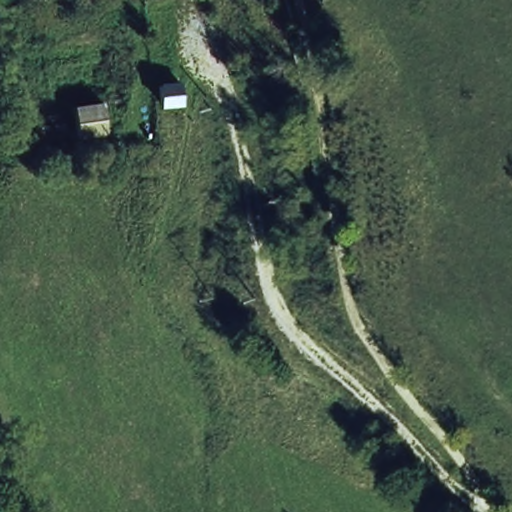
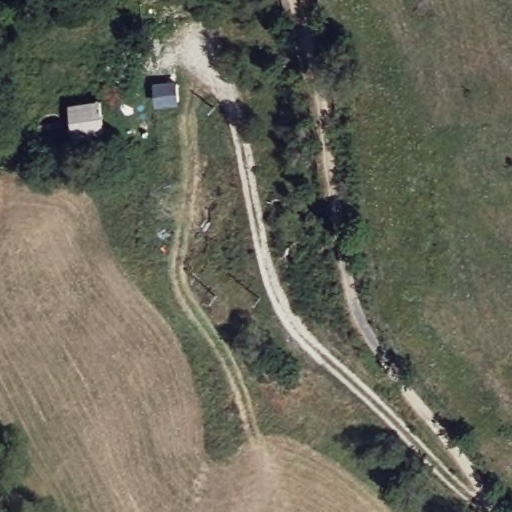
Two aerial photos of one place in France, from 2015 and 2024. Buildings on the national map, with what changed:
unchanged [(70,106),(100,106),(102,135),(74,137),(70,106)]

